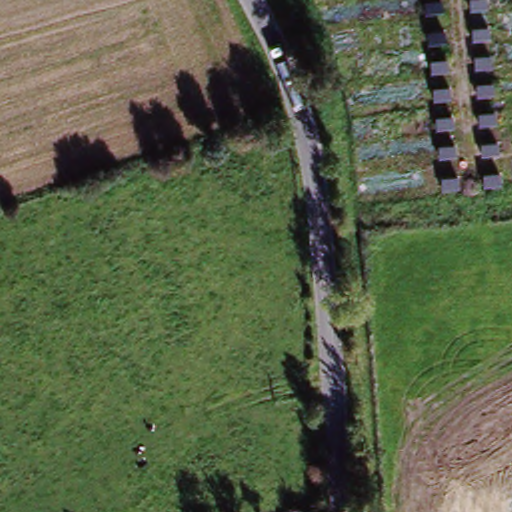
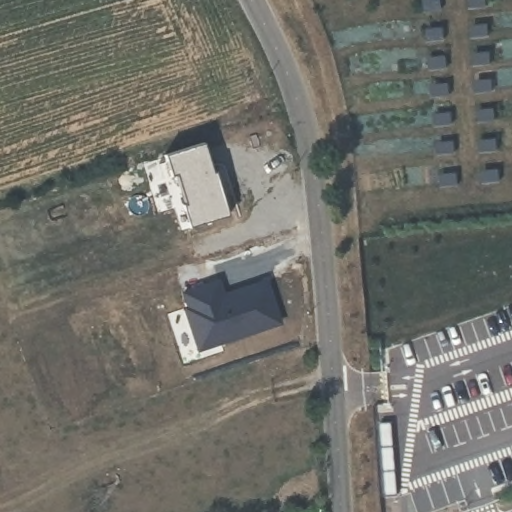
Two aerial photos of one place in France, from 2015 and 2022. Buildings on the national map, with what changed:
new [(164,152),(203,140),(218,186),(221,185),(229,212),(191,225),(183,202),(186,202),(176,172),(171,174),(164,152)]
new [(187,307),(183,292),(217,281),(222,296),(265,282),(278,324),(197,350),(183,308),(187,307)]

